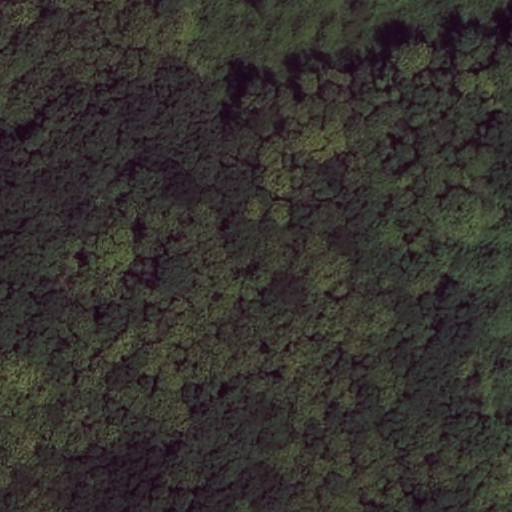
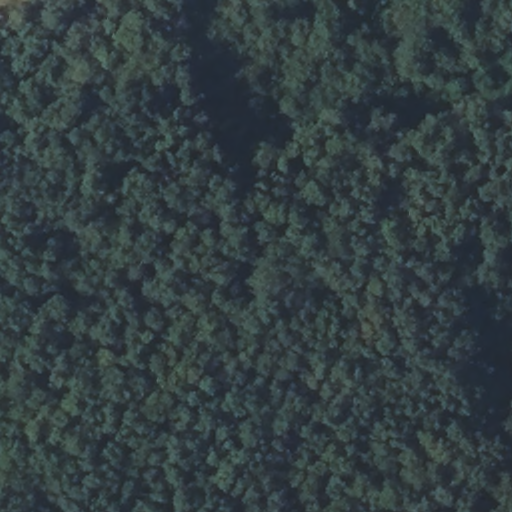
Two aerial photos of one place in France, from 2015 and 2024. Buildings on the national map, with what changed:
[]

